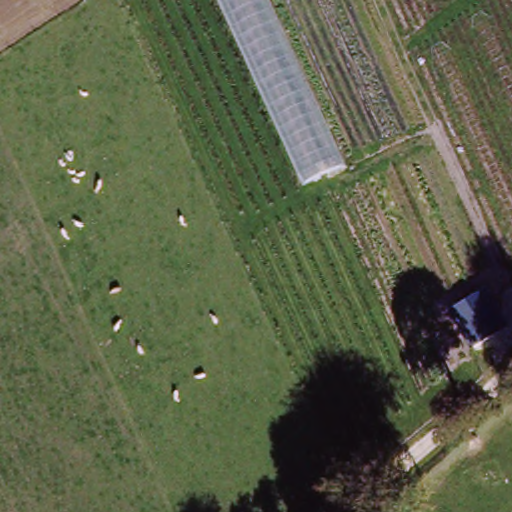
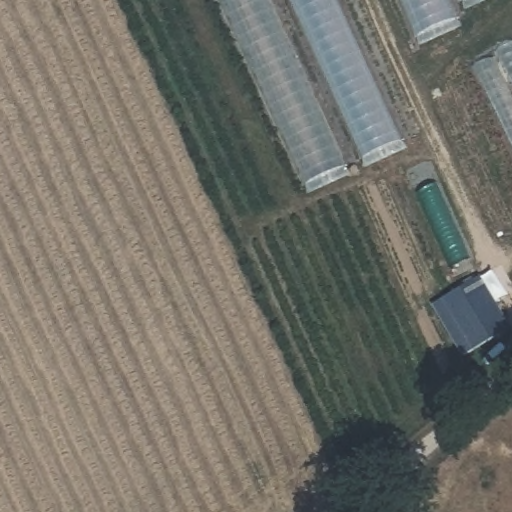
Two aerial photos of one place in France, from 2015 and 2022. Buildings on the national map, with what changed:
unchanged [(305,184),(218,0),(268,0),(346,166),(305,184)]
new [(289,0),(337,0),(402,140),(362,158),(289,0)]
new [(448,0),(457,19),(417,35),(402,0),(448,0)]
unchanged [(507,326),(471,351),(448,313),(482,291),(507,326)]

